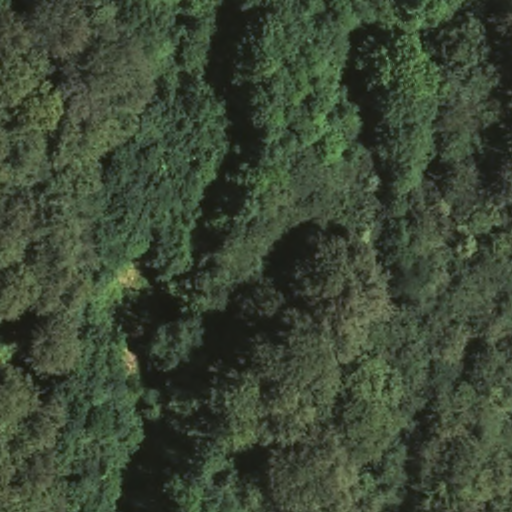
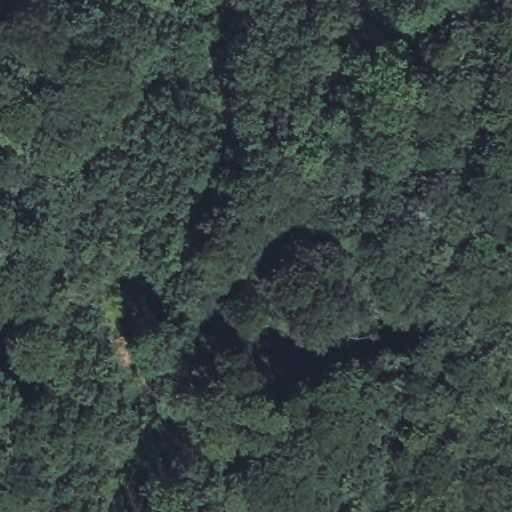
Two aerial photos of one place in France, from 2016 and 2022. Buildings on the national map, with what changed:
[]

